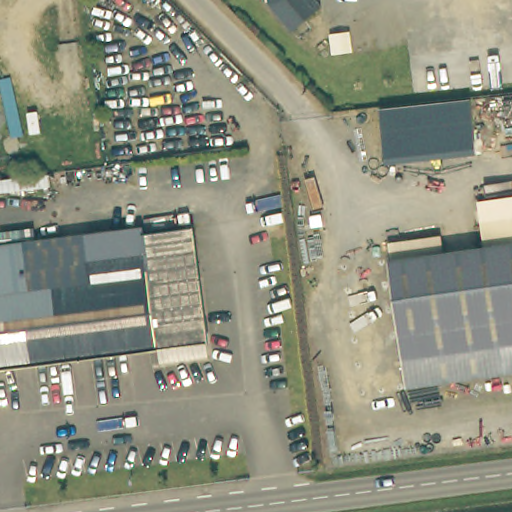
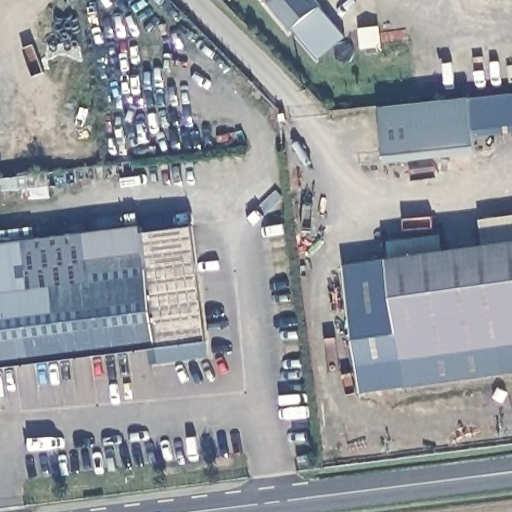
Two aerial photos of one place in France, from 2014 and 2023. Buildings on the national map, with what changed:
new [(292,30),(268,2),(268,0),(316,0),(345,37),(319,59),(294,28),(292,30)]
new [(471,98),(512,93),(512,132),(475,136),(471,98)]
unchanged [(471,98),(476,154),(385,163),(379,107),(471,98)]
unchanged [(477,201),(512,195),(512,241),(485,246),(477,201)]
unchanged [(0,365),(0,240),(90,227),(91,236),(194,221),(215,354),(167,361),(156,363),(152,343),(0,365)]
unchanged [(388,259),(413,256),(512,241),(512,370),(425,383),(407,385),(403,362),(388,259)]
new [(343,265),(388,259),(403,362),(407,385),(362,393),(343,265)]

